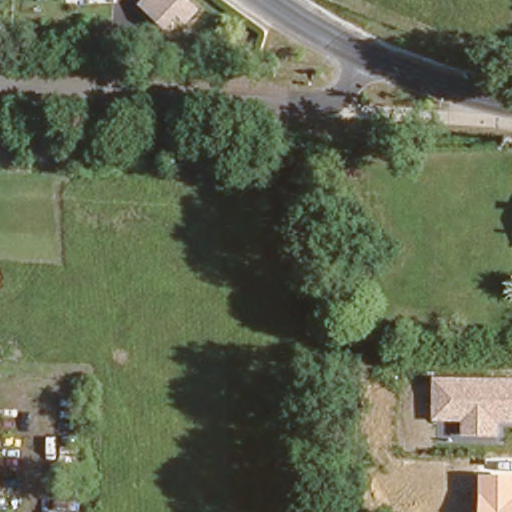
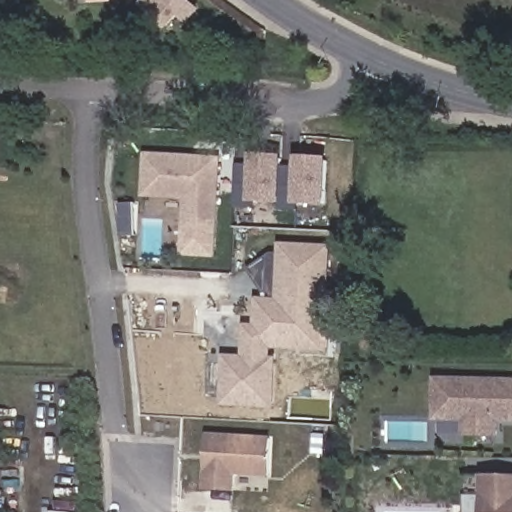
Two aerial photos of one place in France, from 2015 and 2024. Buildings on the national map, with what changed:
new [(180,17),(168,31),(138,4),(142,0),(191,0),(202,9),(189,24),(180,17)]
new [(181,255),(184,200),(144,197),(147,152),(223,157),(217,257),(181,255)]
new [(236,205),(237,165),(252,166),(252,155),(282,156),(286,166),(296,166),(297,156),(331,158),(328,207),(311,206),(236,205)]
new [(272,253),(282,253),(282,247),(317,248),(315,285),(326,286),(323,334),(299,333),(298,347),(268,345),(267,358),(273,359),(272,406),(224,403),(226,357),(244,359),(247,328),(257,325),(259,301),(266,301),(267,296),(248,268),(272,253)]
unchanged [(463,436),(464,421),(435,421),(436,377),(512,378),(512,423),(500,423),(500,436),(463,436)]
unchanged [(3,512),(0,512),(0,418),(3,512)]
new [(268,477),(237,475),(236,491),(204,490),(207,433),(271,436),(268,477)]
unchanged [(482,475),(512,475),(512,512),(482,512),(482,475)]

